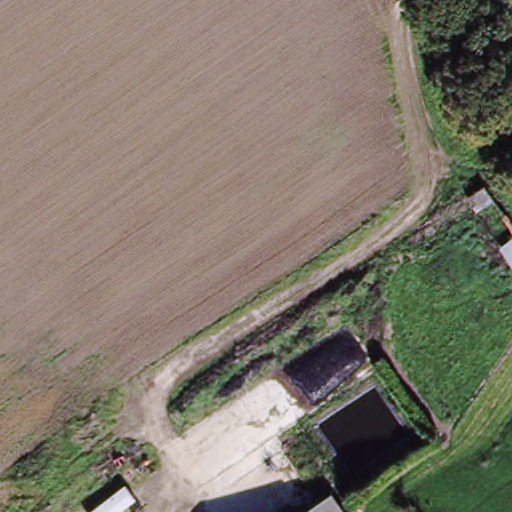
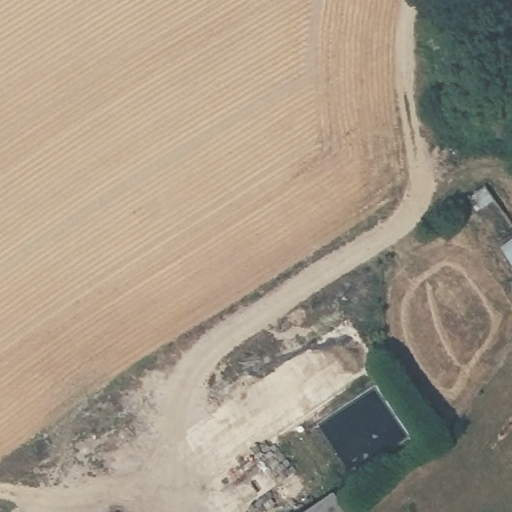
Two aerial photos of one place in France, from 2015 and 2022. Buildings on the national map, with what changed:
unchanged [(335,499),(344,512),(318,512),(335,499)]

